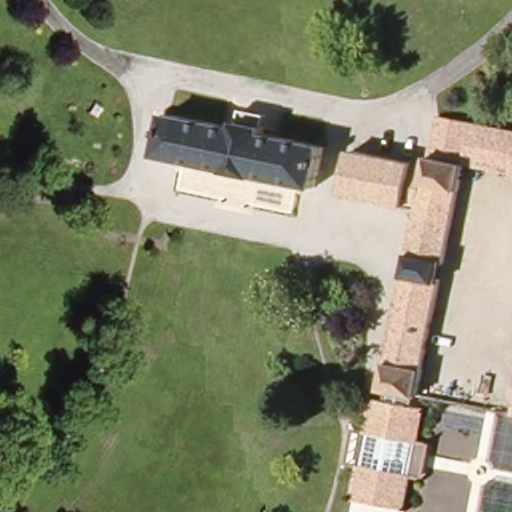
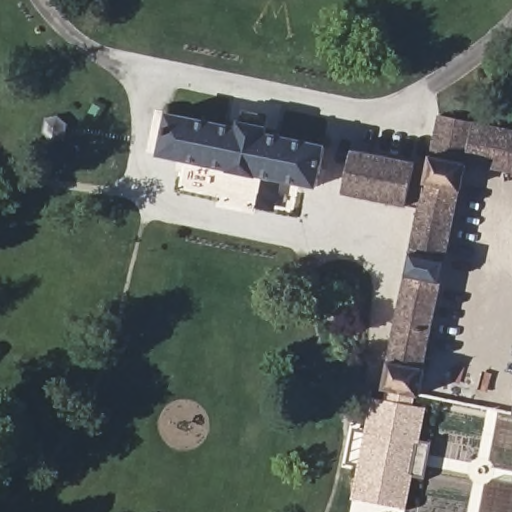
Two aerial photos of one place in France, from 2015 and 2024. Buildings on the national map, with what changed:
unchanged [(265,124),(270,125),(268,134),(325,144),(317,187),(254,174),(226,169),(162,157),(165,138),(155,135),(158,115),(229,128),(231,118),(241,120),(265,124)]
unchanged [(375,429),(381,398),(396,400),(397,391),(391,389),(426,208),(340,190),(348,147),(433,162),(443,116),(512,128),(512,173),(469,168),(424,404),(437,407),(432,441),(445,443),(439,478),(425,477),(419,507),(362,497),(368,465),(356,463),(362,427),(375,429)]

